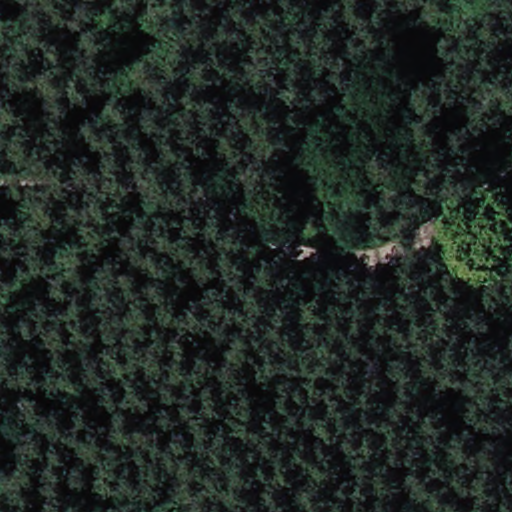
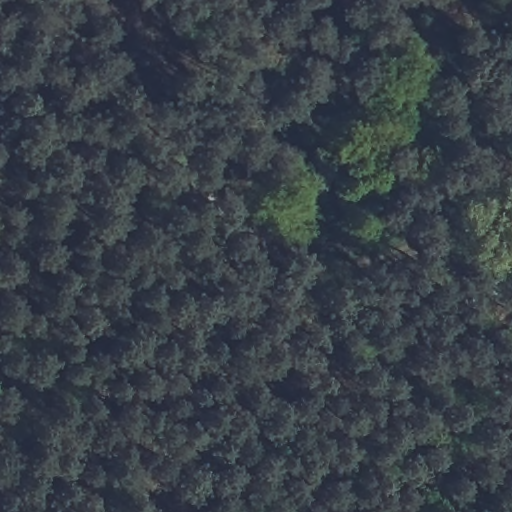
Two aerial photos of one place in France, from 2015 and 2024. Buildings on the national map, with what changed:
unchanged [(318,214),(269,194),(280,157),(326,169),(318,214)]

